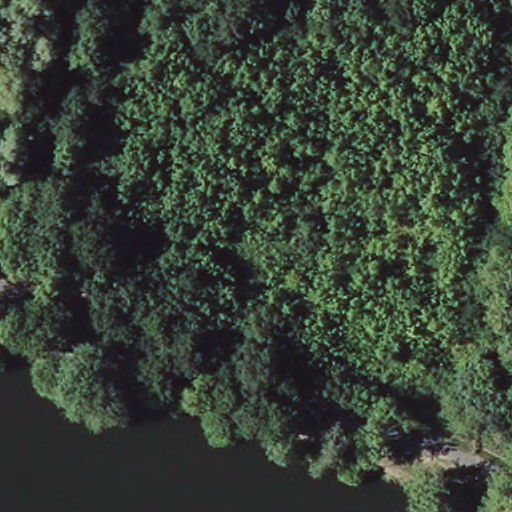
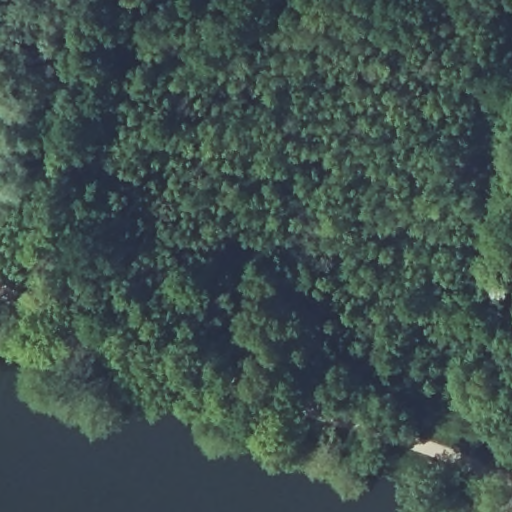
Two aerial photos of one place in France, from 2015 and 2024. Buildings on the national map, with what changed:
[]

